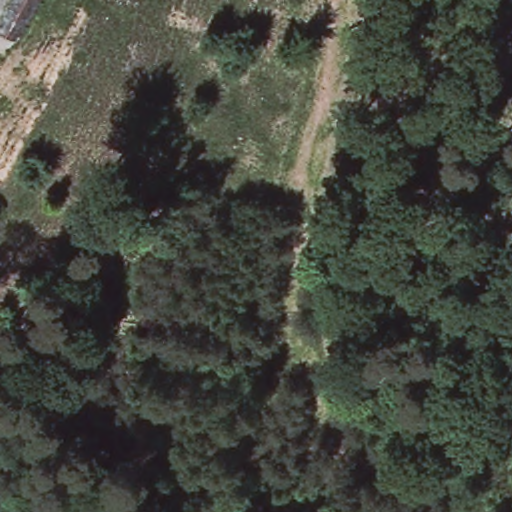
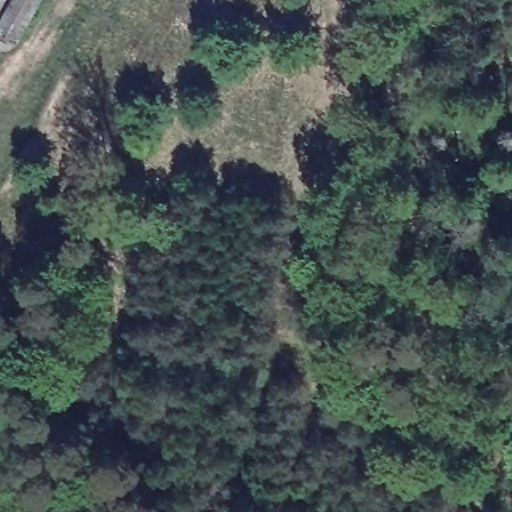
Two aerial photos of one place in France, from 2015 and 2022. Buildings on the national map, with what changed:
unchanged [(21,44),(0,34),(0,25),(13,0),(44,0),(21,44)]

